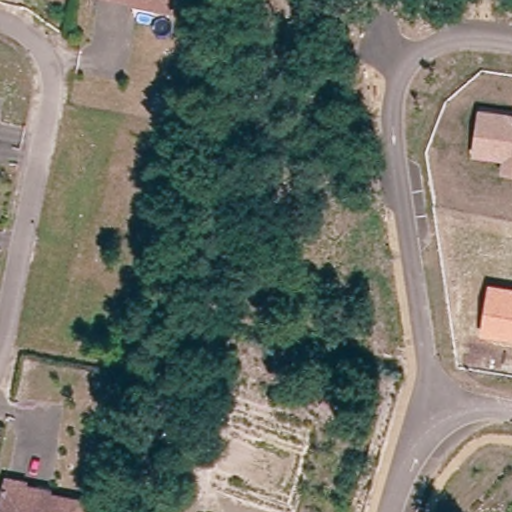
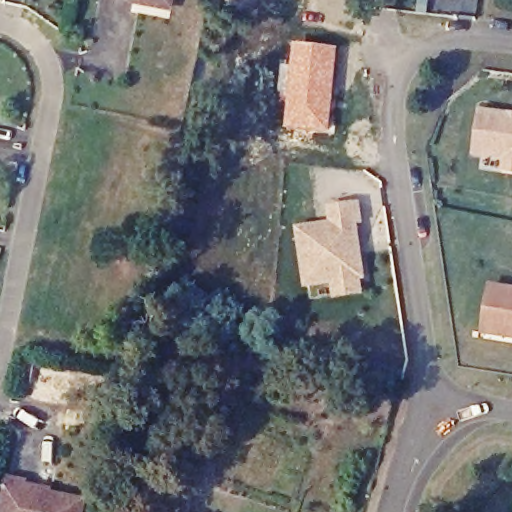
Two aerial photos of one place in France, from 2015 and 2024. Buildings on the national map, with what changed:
unchanged [(175,4),(137,0),(175,0),(175,4)]
new [(279,62),(292,64),(294,41),(339,46),(329,132),(271,127),(279,62)]
unchanged [(512,176),(501,175),(502,160),(472,156),(478,109),(512,113),(512,176)]
new [(357,225),(365,279),(361,280),(363,293),(365,307),(335,312),(332,297),(330,284),(304,289),(294,226),(328,221),(326,207),(360,198),(364,222),(357,225)]
unchanged [(489,285),(512,288),(512,339),(481,333),(489,285)]
unchanged [(82,512),(0,512),(0,511),(8,476),(26,480),(24,487),(84,501),(82,512)]

